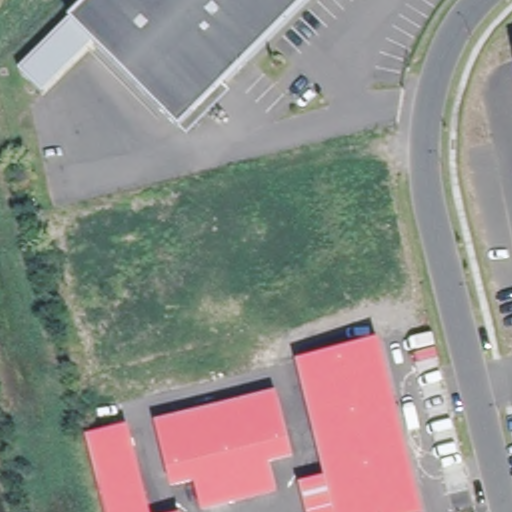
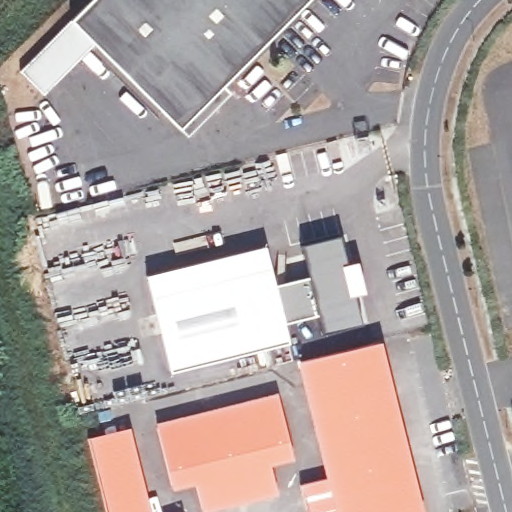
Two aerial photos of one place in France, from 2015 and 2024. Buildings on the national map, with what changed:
unchanged [(265,43),(214,95),(182,127),(172,117),(157,103),(96,42),(46,92),(22,68),(90,0),(308,0),(265,43)]
new [(277,284),(312,275),(305,243),(340,236),(345,263),(357,261),(365,293),(355,295),(362,324),(323,334),(318,314),(284,322),(288,342),(171,370),(148,275),(265,244),(277,284)]
unchanged [(308,512),(301,485),(328,477),(299,363),(381,340),(422,512),(308,512)]
unchanged [(295,458),(271,465),(278,495),(206,512),(204,512),(197,484),(173,489),(158,422),(278,392),(295,458)]
unchanged [(150,512),(107,512),(88,438),(130,429),(150,512)]

